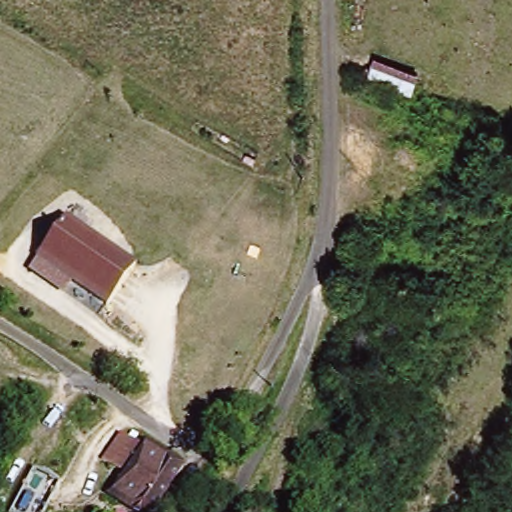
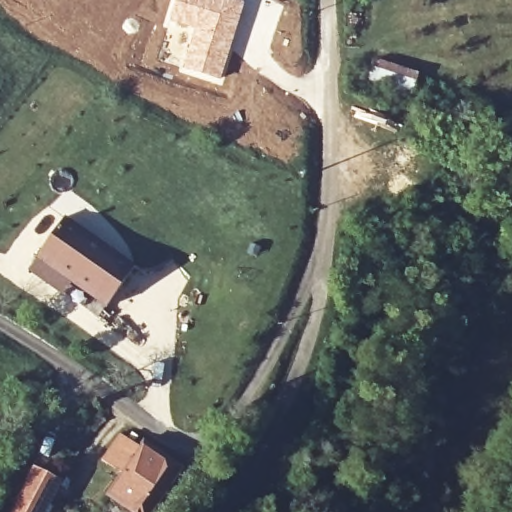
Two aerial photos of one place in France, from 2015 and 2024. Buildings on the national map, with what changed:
new [(175,0),(237,0),(244,3),(220,81),(179,69),(192,29),(168,21),(175,0)]
unchanged [(366,80),(374,61),(417,75),(414,96),(366,80)]
unchanged [(138,266),(110,307),(39,257),(66,216),(138,266)]
unchanged [(144,442),(184,470),(165,499),(125,471),(144,442)]
new [(60,487),(47,512),(10,512),(34,465),(60,479),(56,485),(60,487)]
unchanged [(125,512),(106,499),(125,471),(165,499),(156,512),(125,512)]

